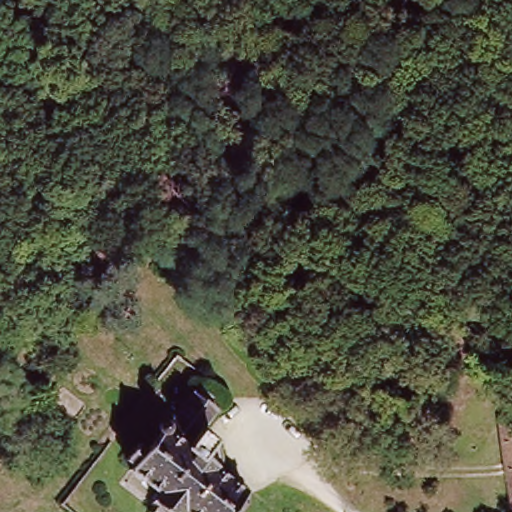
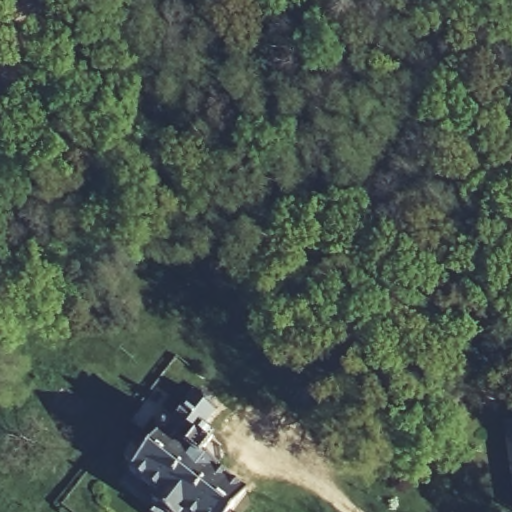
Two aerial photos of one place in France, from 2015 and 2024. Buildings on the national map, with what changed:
unchanged [(134,446),(142,450),(156,436),(153,431),(157,425),(164,424),(191,393),(197,397),(201,392),(209,398),(205,405),(213,411),(197,434),(214,449),(218,465),(215,472),(242,495),(230,512),(149,512),(160,497),(127,472),(130,467),(122,460),(134,446)]
unchanged [(505,423),(512,423),(512,474),(505,423)]

